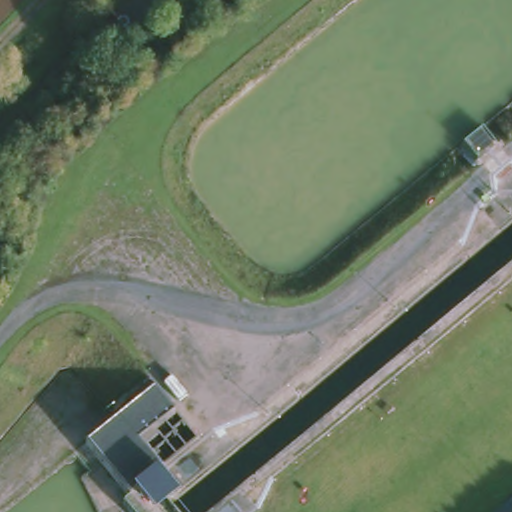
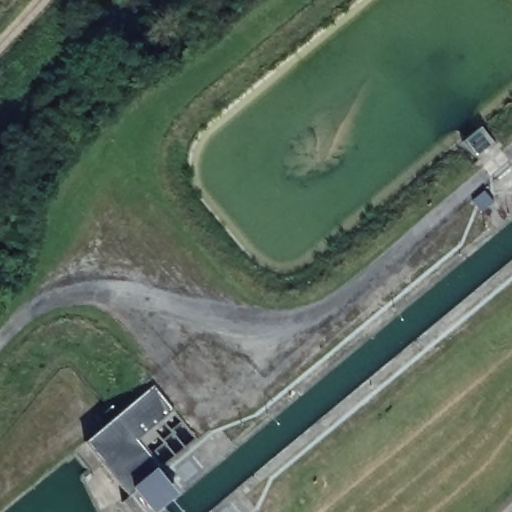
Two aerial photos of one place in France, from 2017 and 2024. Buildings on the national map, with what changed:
unchanged [(481,129),(495,147),(479,157),(465,141),(481,129)]
unchanged [(151,383),(190,438),(161,478),(173,492),(151,512),(133,488),(128,490),(83,442),(151,383)]

